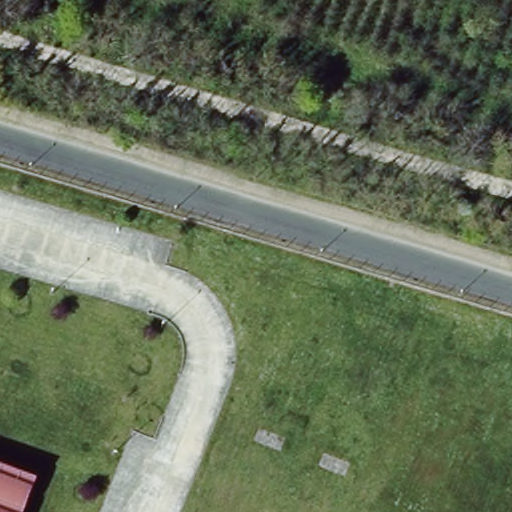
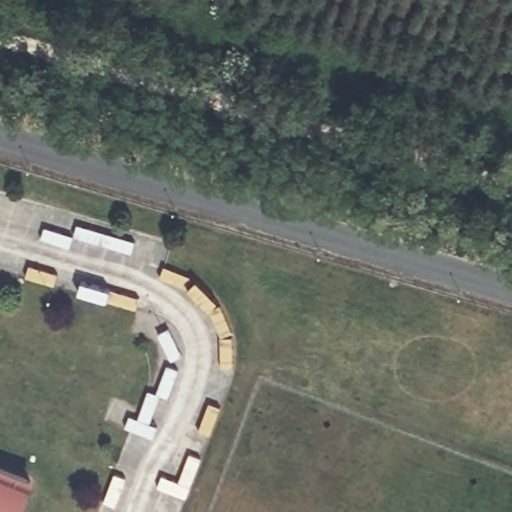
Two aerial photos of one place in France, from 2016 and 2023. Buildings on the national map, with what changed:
unchanged [(26,512),(0,512),(0,467),(38,481),(26,512)]

